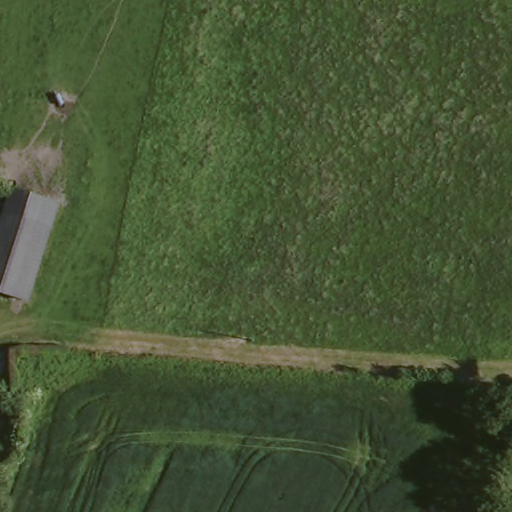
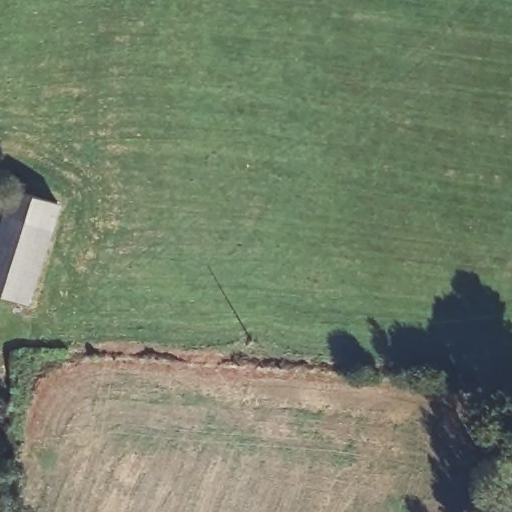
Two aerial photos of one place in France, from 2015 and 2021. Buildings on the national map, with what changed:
unchanged [(0,294),(0,229),(11,192),(54,208),(26,302),(0,294)]

